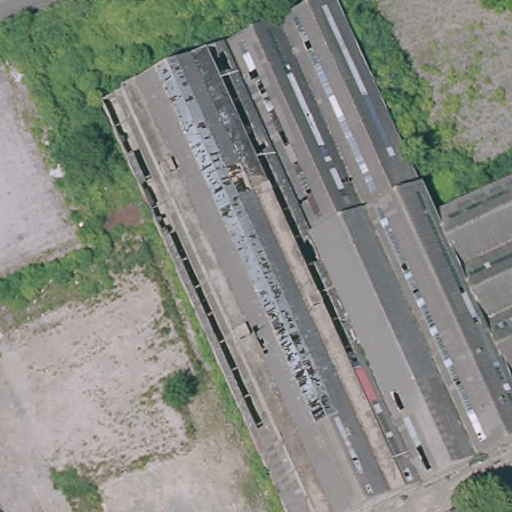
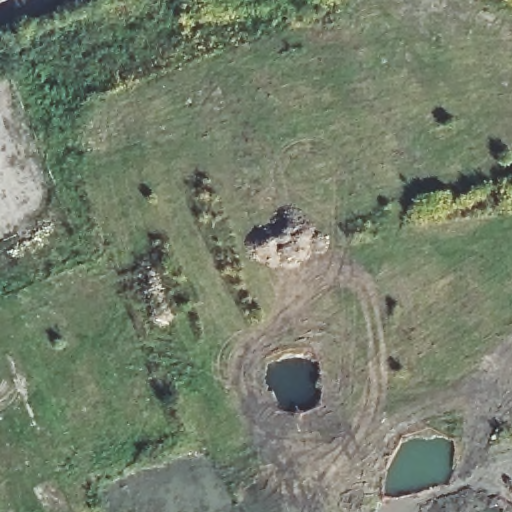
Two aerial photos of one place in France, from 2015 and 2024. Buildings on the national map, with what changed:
new [(1,0),(10,0),(2,4),(1,0)]
demolished [(378,501),(353,512),(283,512),(254,447),(175,267),(101,100),(232,41),(325,0),(332,0),(386,122),(428,215),(512,178),(512,442),(486,453),(378,501)]
demolished [(183,435),(92,480),(23,340),(114,296),(183,435)]
demolished [(466,512),(456,512),(464,508),(466,512)]

